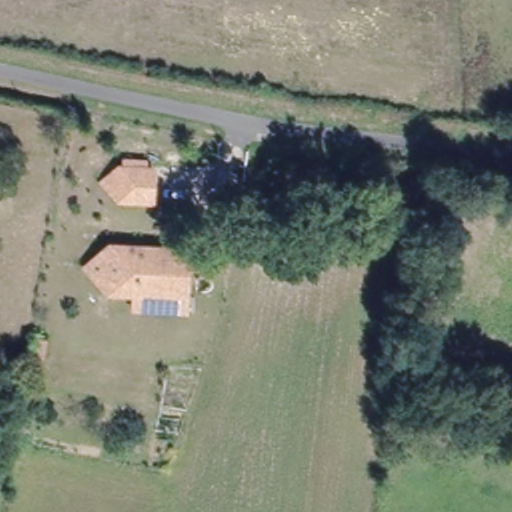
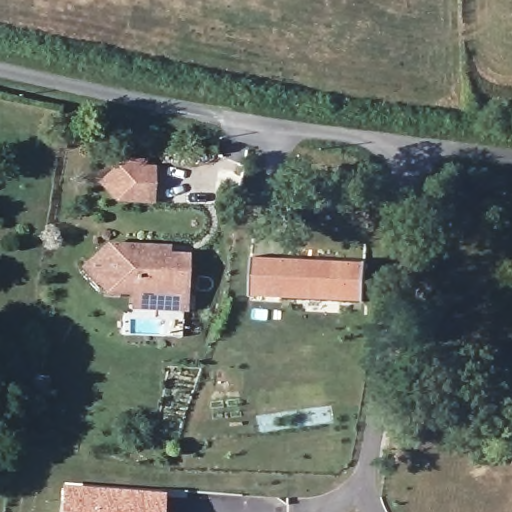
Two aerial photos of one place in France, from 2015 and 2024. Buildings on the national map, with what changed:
unchanged [(153,196),(124,195),(107,177),(123,162),(157,165),(153,196)]
unchanged [(143,302),(142,287),(116,286),(95,263),(117,241),(163,244),(163,251),(192,252),(187,291),(187,305),(143,302)]
new [(366,262),(363,303),(251,296),(252,257),(366,262)]
new [(163,512),(61,512),(63,485),(165,492),(163,512)]

